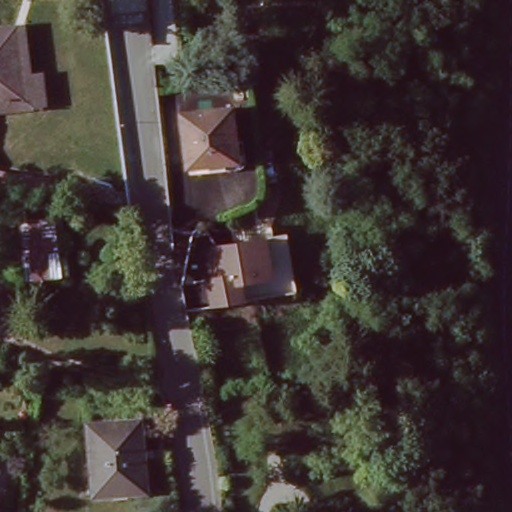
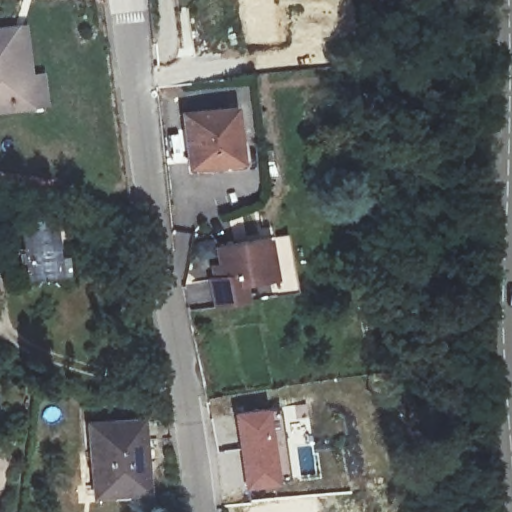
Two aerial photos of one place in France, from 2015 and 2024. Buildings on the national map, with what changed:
unchanged [(5,36),(20,34),(25,70),(37,68),(41,96),(13,99),(5,36)]
unchanged [(0,101),(0,37),(5,36),(13,99),(0,101)]
unchanged [(231,108),(237,156),(183,164),(177,115),(231,108)]
unchanged [(68,272),(54,274),(20,278),(9,225),(43,219),(49,244),(62,242),(68,272)]
unchanged [(221,280),(219,267),(226,266),(223,248),(272,240),(279,277),(247,283),(251,302),(227,307),(221,307),(216,280),(221,280)]
new [(266,403),(278,481),(243,487),(231,409),(266,403)]
unchanged [(136,419),(140,492),(89,494),(86,420),(136,419)]

